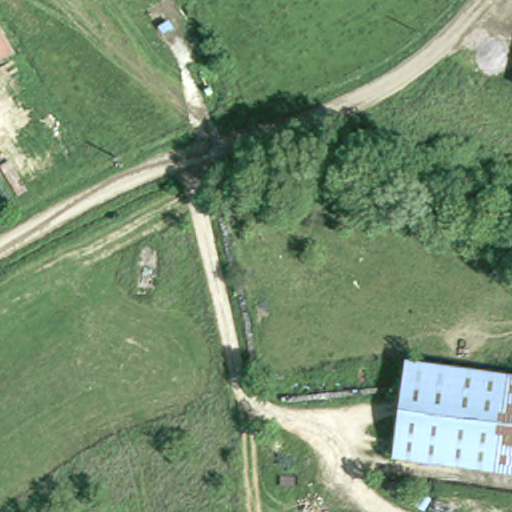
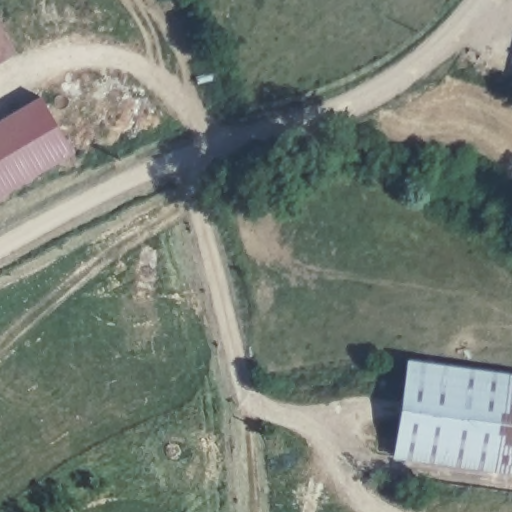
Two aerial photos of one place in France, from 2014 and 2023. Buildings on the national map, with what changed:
unchanged [(12,52),(0,59),(0,32),(2,35),(12,52)]
new [(72,150),(0,193),(0,116),(39,93),(72,150)]
unchanged [(512,475),(395,459),(405,404),(412,362),(512,375),(512,475)]

